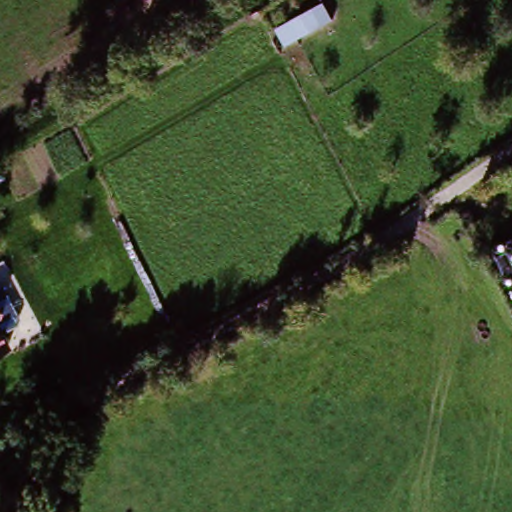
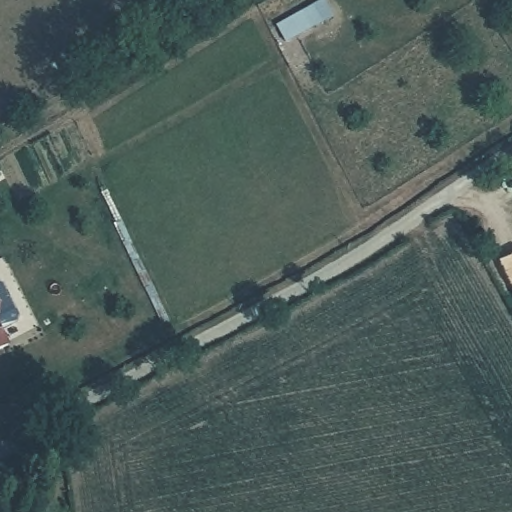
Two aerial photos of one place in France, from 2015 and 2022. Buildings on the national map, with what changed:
unchanged [(271,30),(309,11),(320,27),(283,49),(271,30)]
unchanged [(0,315),(0,310),(3,315),(0,315)]
unchanged [(0,325),(10,345),(0,350),(0,325)]

